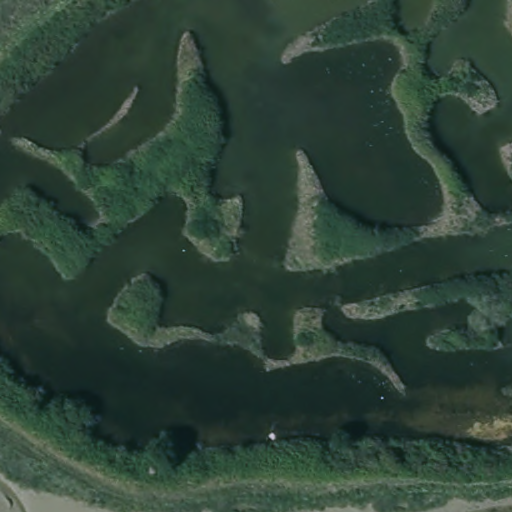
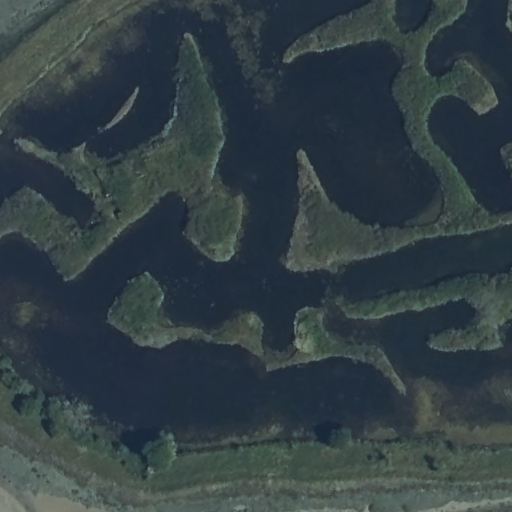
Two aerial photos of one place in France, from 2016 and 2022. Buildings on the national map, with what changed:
[]

